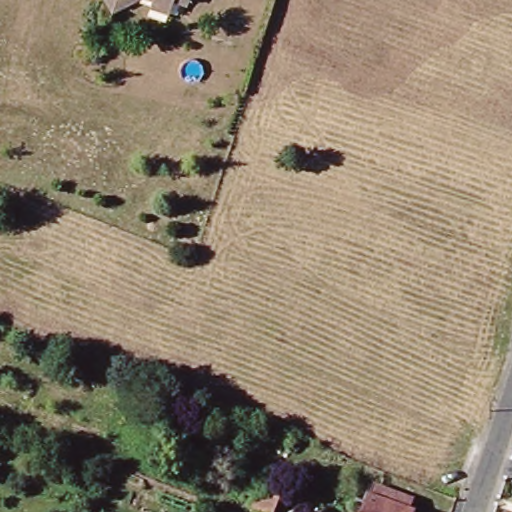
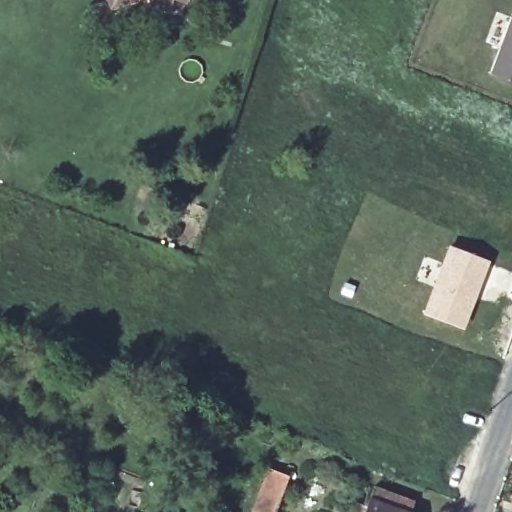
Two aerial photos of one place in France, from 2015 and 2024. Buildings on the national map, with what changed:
unchanged [(117,9),(112,0),(133,0),(117,9)]
unchanged [(157,0),(175,0),(173,11),(156,5),(157,0)]
unchanged [(192,1),(188,0),(192,0),(192,1)]
new [(511,16),(512,17),(512,83),(489,74),(511,16)]
new [(448,243),(491,260),(463,329),(421,312),(448,243)]
unchanged [(267,462),(290,470),(277,512),(267,512),(264,510),(263,512),(251,512),(253,506),(267,462)]
unchanged [(400,495),(396,505),(415,512),(366,512),(376,485),(400,495)]

